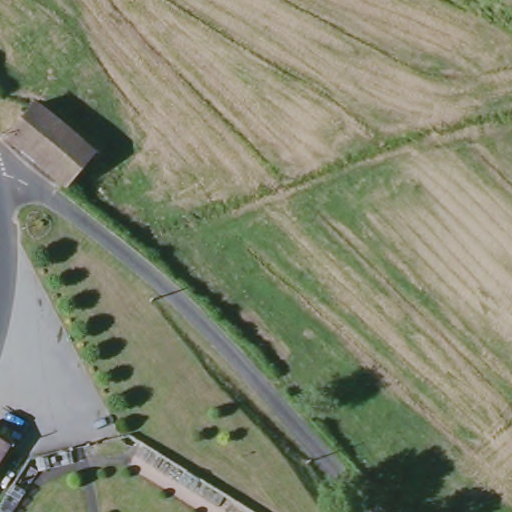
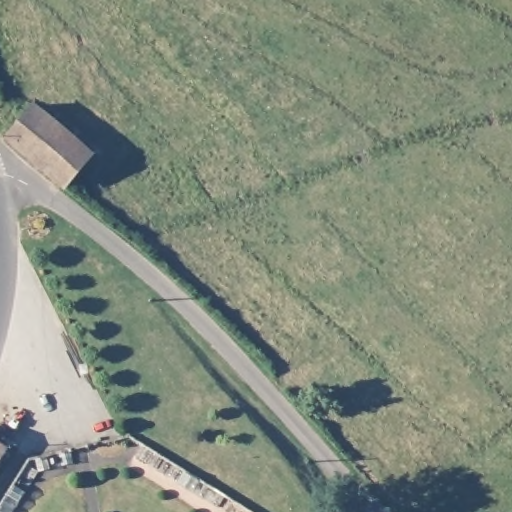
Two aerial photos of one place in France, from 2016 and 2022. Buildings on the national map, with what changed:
unchanged [(90,154),(64,187),(7,139),(29,112),(33,107),(90,154)]
unchanged [(10,437),(0,452),(0,432),(10,437)]

